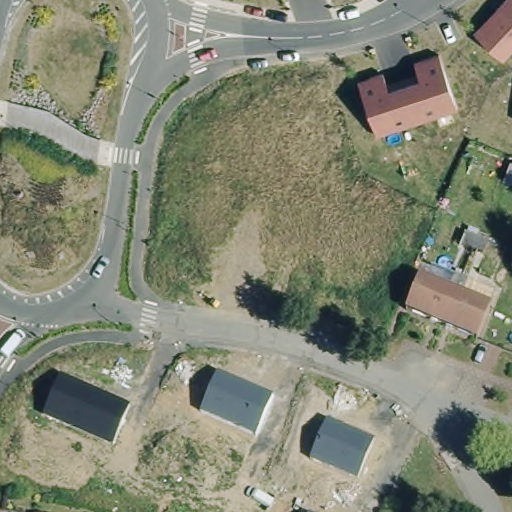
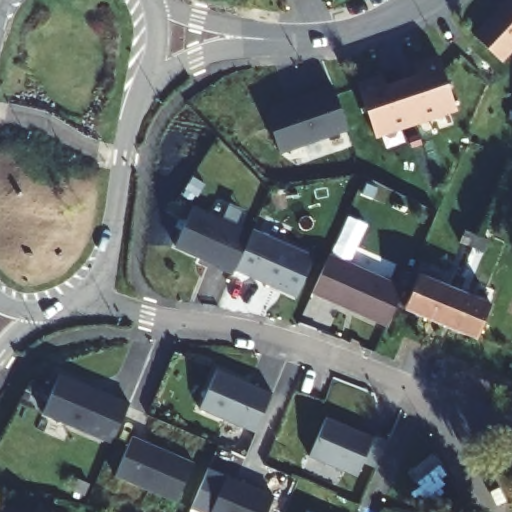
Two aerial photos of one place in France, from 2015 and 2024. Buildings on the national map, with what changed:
unchanged [(501,60),(470,30),(500,0),(512,0),(512,48),(501,60)]
unchanged [(371,135),(352,79),(379,69),(384,83),(413,75),(410,61),(437,54),(452,109),(371,135)]
new [(297,98),(297,101),(304,98),(305,95),(335,85),(350,128),(281,151),(267,108),(297,98)]
new [(297,296),(235,269),(233,274),(175,246),(192,203),(252,230),(253,227),(314,254),(297,296)]
new [(387,325),(313,293),(330,252),(404,285),(387,325)]
unchanged [(406,304),(420,272),(447,284),(453,269),(460,273),(441,319),(406,304)]
unchanged [(461,289),(488,302),(475,334),(441,319),(460,273),(467,275),(461,289)]
unchanged [(273,392),(256,433),(200,409),(217,370),(273,392)]
unchanged [(130,402),(112,444),(42,414),(58,373),(130,402)]
unchanged [(376,437),(358,478),(310,457),(327,417),(376,437)]
new [(132,432),(193,458),(176,498),(115,471),(132,432)]
new [(273,494),(265,512),(208,512),(226,473),(273,494)]
unchanged [(51,512),(36,512),(36,510),(51,512)]
unchanged [(308,512),(308,511),(311,512),(308,512)]

